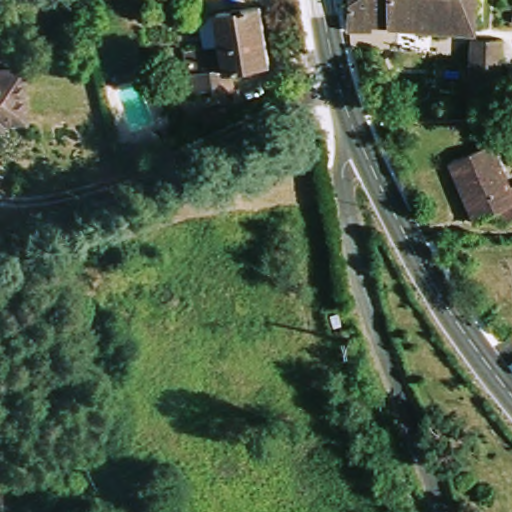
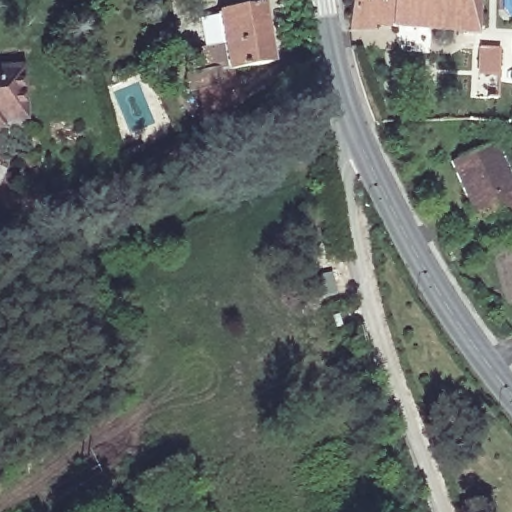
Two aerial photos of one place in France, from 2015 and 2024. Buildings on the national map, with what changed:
unchanged [(394,29),(354,27),(354,19),(344,19),(345,0),(480,0),(480,34),(393,33),(394,29)]
unchanged [(190,74),(187,49),(226,45),(221,12),(266,7),(272,60),(227,65),(227,63),(218,64),(219,87),(187,89),(185,74),(190,74)]
unchanged [(507,41),(505,108),(504,125),(477,124),(480,41),(507,41)]
unchanged [(2,123),(0,123),(0,63),(14,60),(24,112),(1,116),(2,123)]
unchanged [(479,222),(473,225),(463,198),(451,162),(491,147),(506,190),(512,188),(512,219),(502,223),(499,215),(479,222)]

